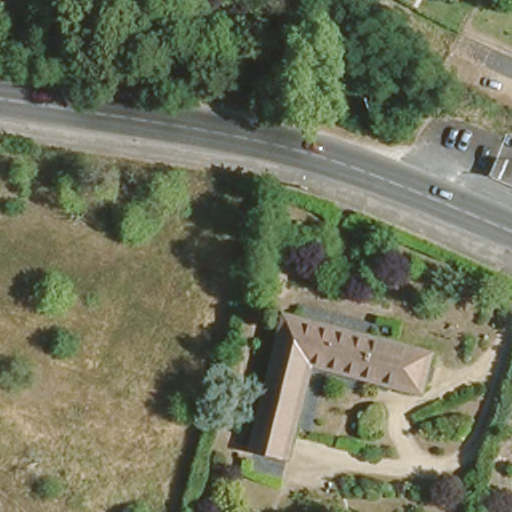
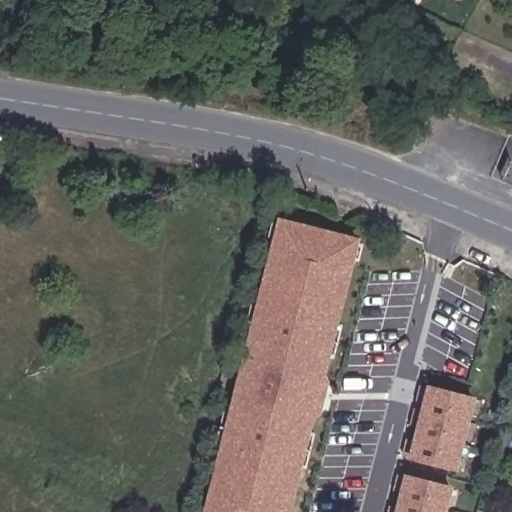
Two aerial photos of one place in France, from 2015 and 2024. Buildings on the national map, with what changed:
new [(294,512),(206,512),(281,217),(361,239),(294,512)]
demolished [(414,385),(304,357),(281,450),(247,440),(281,308),(424,346),(414,385)]
new [(431,386),(478,397),(459,470),(412,458),(431,386)]
new [(449,512),(397,512),(407,474),(455,486),(449,512)]

